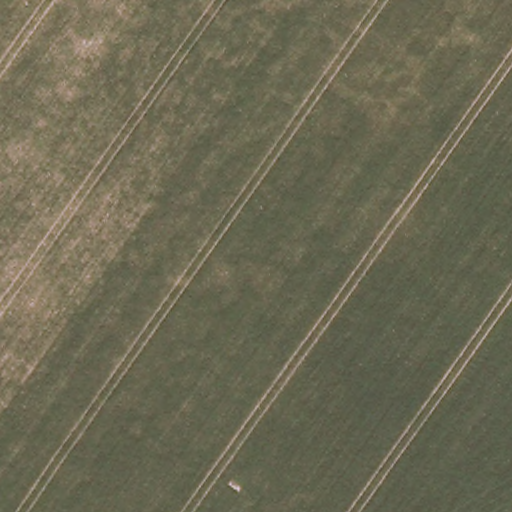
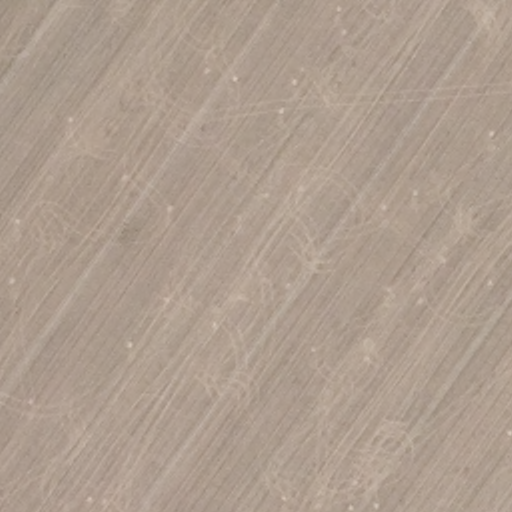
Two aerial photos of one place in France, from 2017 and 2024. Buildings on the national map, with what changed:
[]

